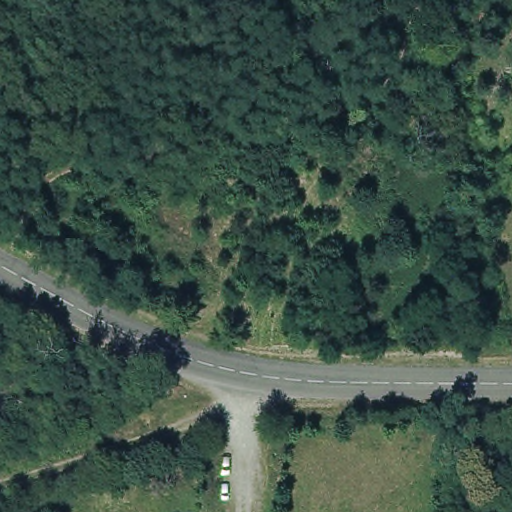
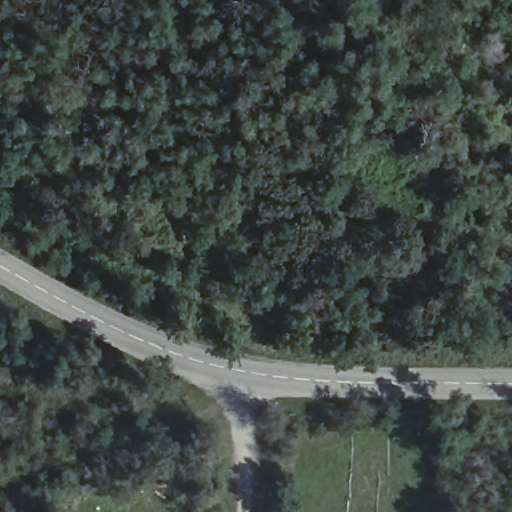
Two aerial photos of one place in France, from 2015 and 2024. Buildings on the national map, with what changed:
unchanged [(316,158),(315,184),(310,192),(251,194),(250,159),(316,158)]

